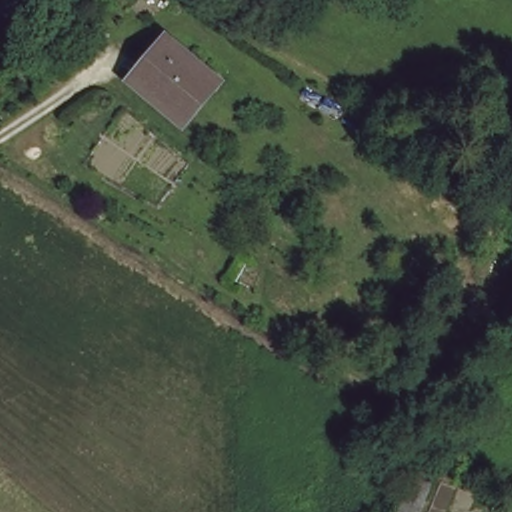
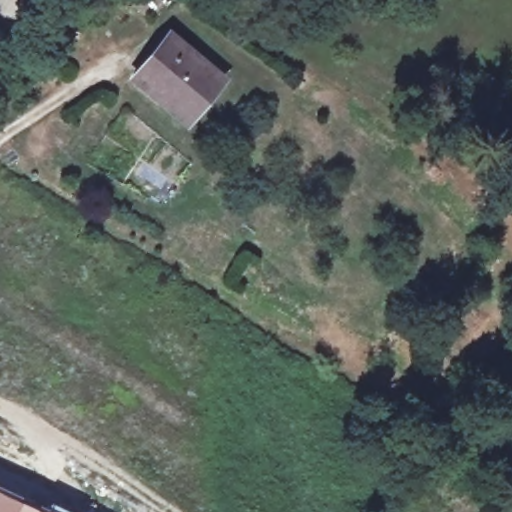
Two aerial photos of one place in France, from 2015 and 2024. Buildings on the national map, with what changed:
unchanged [(226,83),(189,123),(137,78),(175,39),(226,83)]
unchanged [(392,512),(410,464),(432,472),(417,512),(392,512)]
new [(46,510),(48,506),(61,512),(0,512),(0,489),(46,510)]

